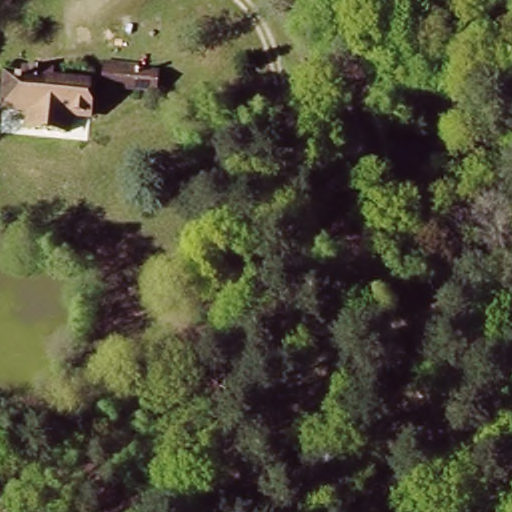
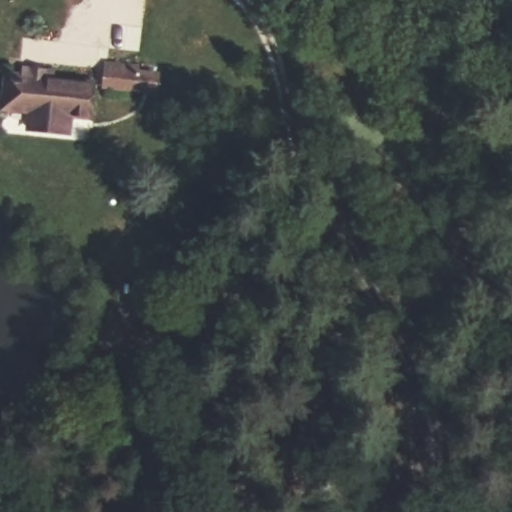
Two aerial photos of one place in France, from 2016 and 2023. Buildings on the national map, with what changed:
unchanged [(101,86),(105,61),(160,64),(156,92),(101,86)]
unchanged [(6,119),(7,84),(95,90),(95,129),(6,119)]

